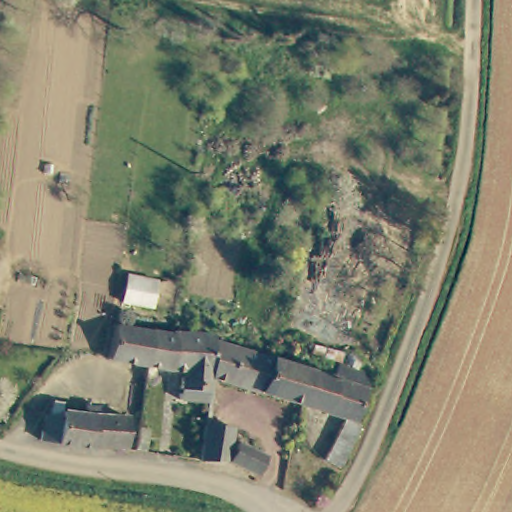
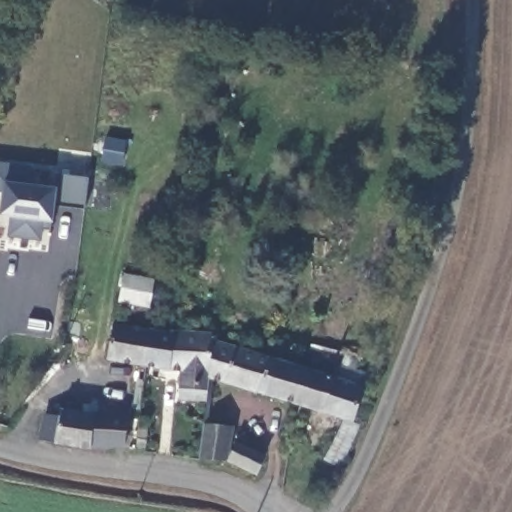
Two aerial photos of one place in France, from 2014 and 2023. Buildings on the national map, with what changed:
new [(29,184),(56,188),(56,175),(88,178),(84,210),(52,206),(52,223),(49,231),(41,230),(40,241),(7,237),(11,219),(0,217),(0,203),(2,192),(0,192),(0,162),(31,166),(29,184)]
new [(124,273),(155,279),(149,307),(117,302),(124,273)]
unchanged [(143,363),(106,357),(112,323),(149,330),(143,363)]
unchanged [(207,377),(206,400),(179,398),(181,370),(143,363),(149,330),(169,331),(210,333),(211,339),(207,377)]
unchanged [(268,357),(331,374),(337,361),(343,362),(343,360),(345,357),(347,353),(351,352),(355,352),(354,367),(370,373),(353,418),(207,377),(211,339),(268,357)]
unchanged [(60,415),(61,410),(126,415),(124,447),(90,447),(40,438),(45,414),(60,415)]
unchanged [(199,464),(202,429),(230,432),(224,464),(199,464)]
unchanged [(263,461),(255,477),(227,465),(236,447),(263,461)]

